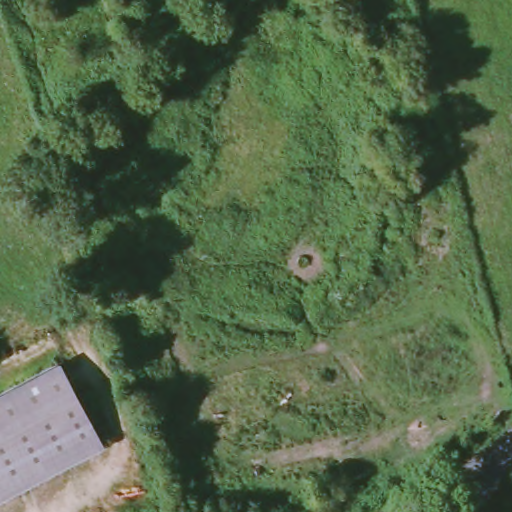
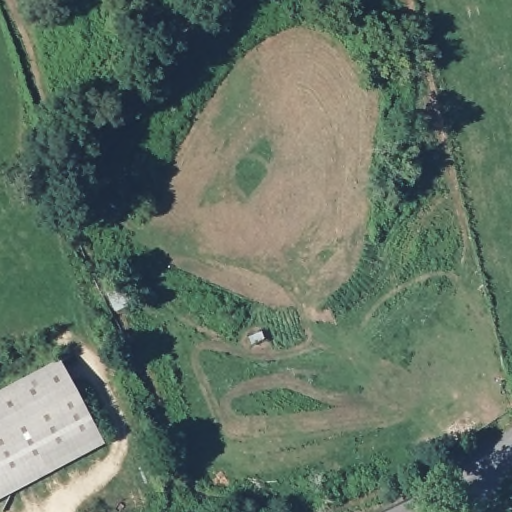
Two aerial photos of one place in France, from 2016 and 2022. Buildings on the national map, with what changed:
unchanged [(107,447),(0,505),(0,398),(61,364),(107,447)]

